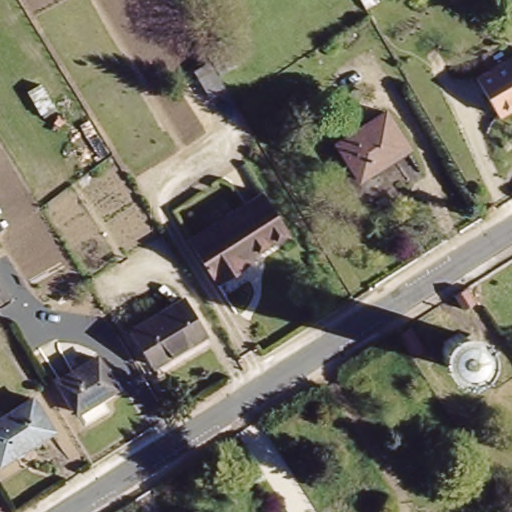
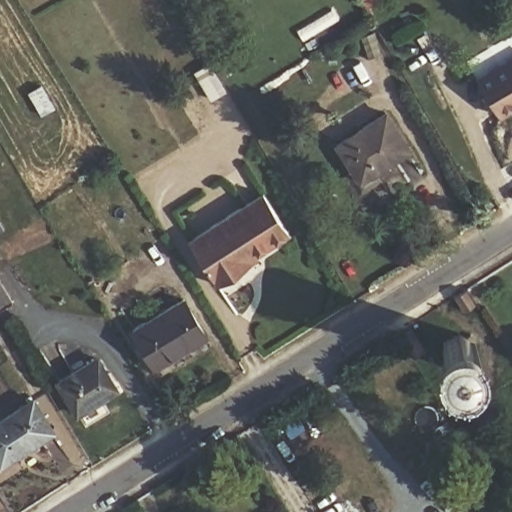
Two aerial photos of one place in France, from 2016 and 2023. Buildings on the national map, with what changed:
unchanged [(473,77),(512,53),(512,104),(495,114),(473,77)]
unchanged [(223,107),(209,83),(221,76),(218,72),(232,63),(247,89),(233,97),(235,100),(223,107)]
unchanged [(410,149),(360,182),(336,145),(386,113),(410,149)]
unchanged [(260,248),(235,209),(260,193),(284,233),(260,248)]
unchanged [(260,248),(245,256),(248,261),(214,282),(186,240),(235,209),(260,248)]
unchanged [(474,296),(463,303),(455,289),(465,283),(474,296)]
unchanged [(0,321),(0,294),(12,315),(0,321)]
unchanged [(203,335),(156,362),(136,329),(184,302),(203,335)]
unchanged [(398,330),(408,323),(422,344),(411,351),(398,330)]
unchanged [(56,387),(94,363),(113,393),(76,417),(56,387)]
unchanged [(53,431),(1,462),(0,461),(0,422),(35,401),(53,431)]

